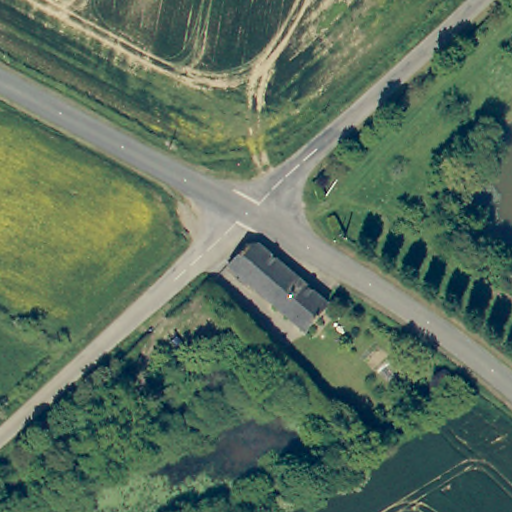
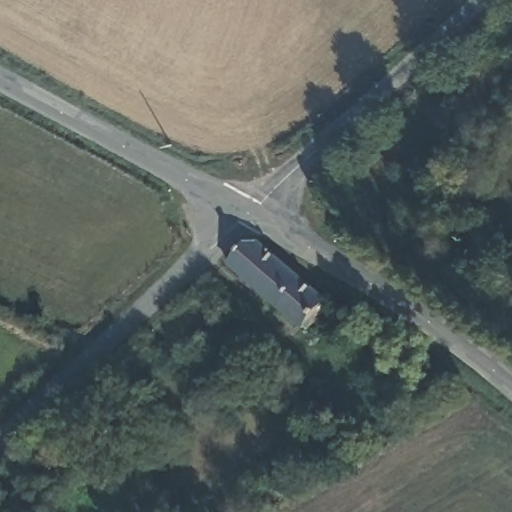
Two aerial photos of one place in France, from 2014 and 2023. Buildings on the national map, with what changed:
unchanged [(248,245),(266,242),(331,303),(309,330),(288,309),(232,262),(248,245)]

